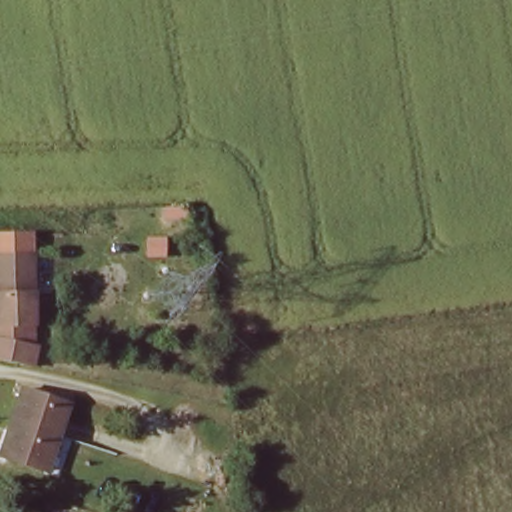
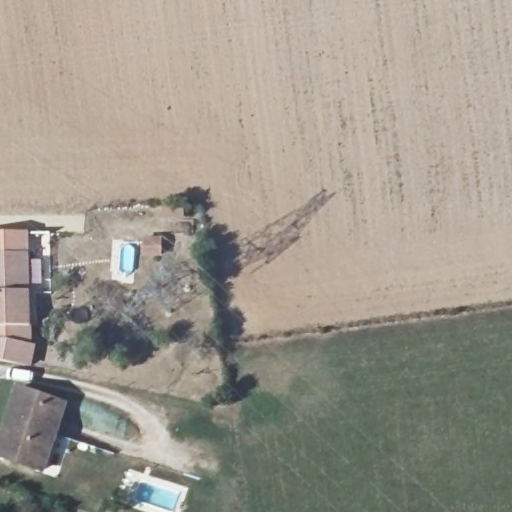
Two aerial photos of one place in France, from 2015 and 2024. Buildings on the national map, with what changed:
unchanged [(0,357),(0,259),(26,260),(23,362),(0,357)]
unchanged [(63,404),(40,471),(0,455),(0,436),(18,388),(63,404)]

